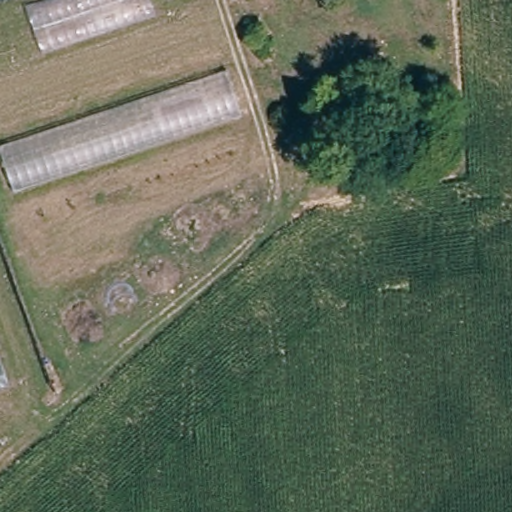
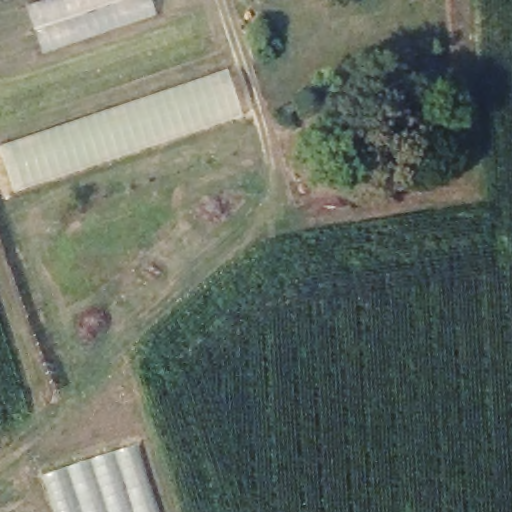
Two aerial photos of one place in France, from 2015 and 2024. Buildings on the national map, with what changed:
unchanged [(150,0),(155,15),(41,53),(25,6),(44,0),(150,0)]
unchanged [(226,73),(240,115),(14,191),(0,154),(0,148),(226,73)]
demolished [(8,386),(0,389),(0,361),(8,386)]
new [(137,445),(159,512),(54,512),(43,476),(137,445)]

